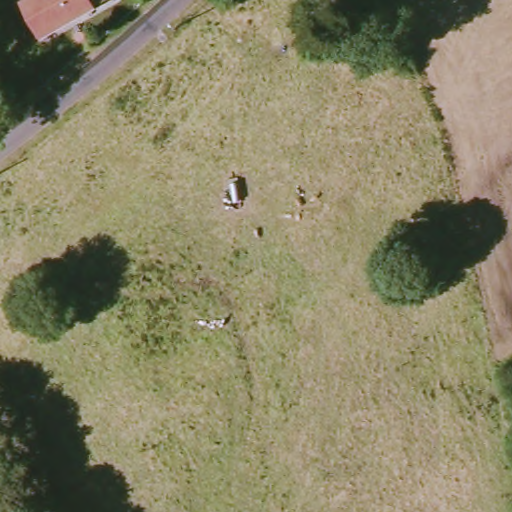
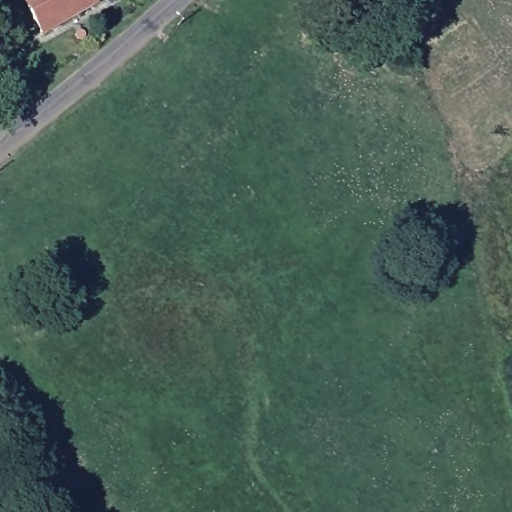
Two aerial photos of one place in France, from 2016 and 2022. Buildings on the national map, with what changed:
unchanged [(25,0),(104,0),(42,35),(23,1),(25,0)]

